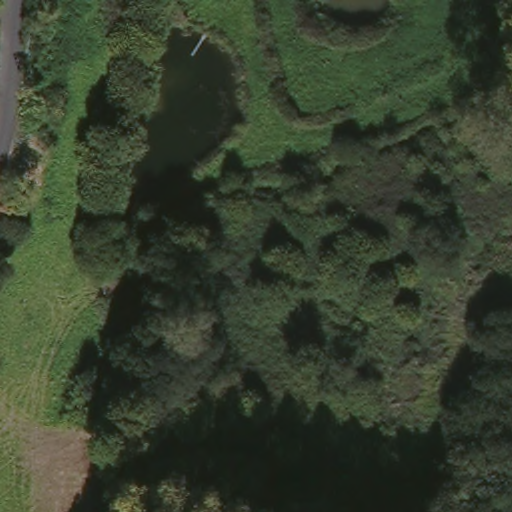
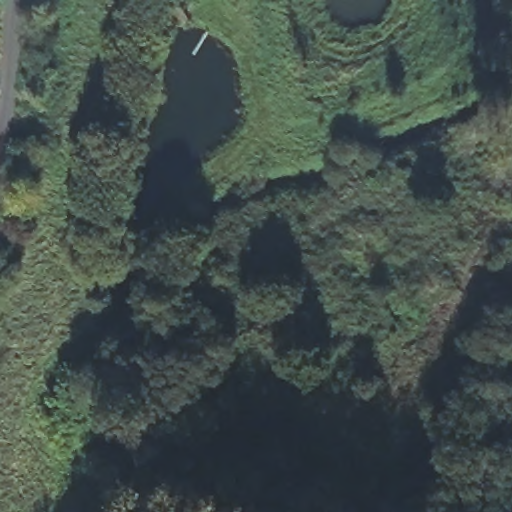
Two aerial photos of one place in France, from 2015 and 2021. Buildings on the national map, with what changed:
unchanged [(179,30),(167,14),(176,5),(190,21),(179,30)]

